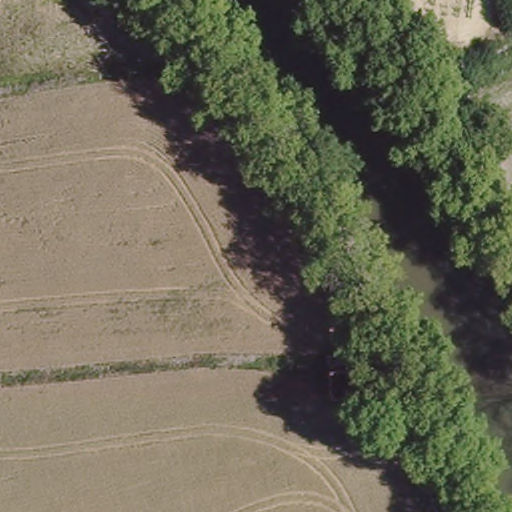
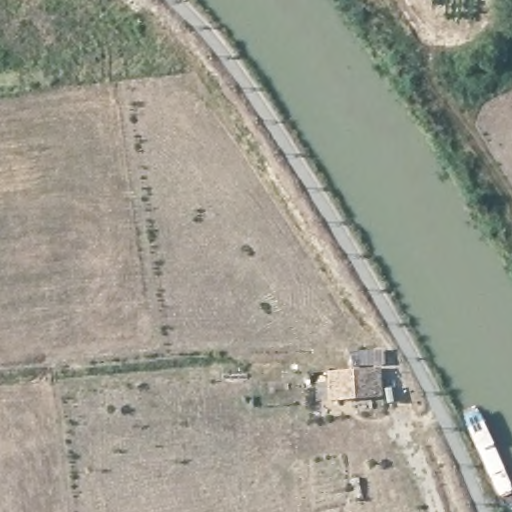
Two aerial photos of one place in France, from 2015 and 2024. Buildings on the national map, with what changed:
new [(382,367),(385,395),(330,400),(329,371),(382,367)]
demolished [(311,369),(362,374),(364,402),(310,397),(311,369)]

